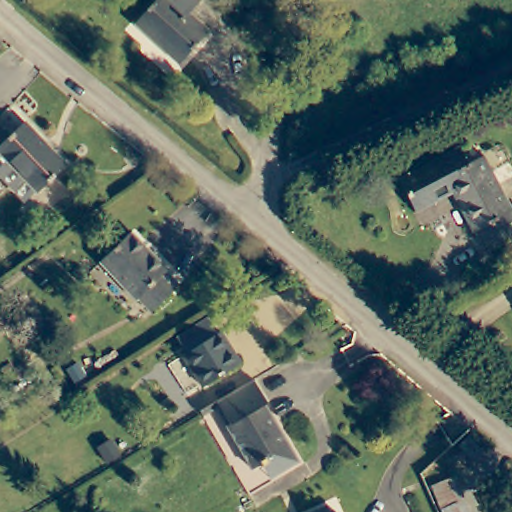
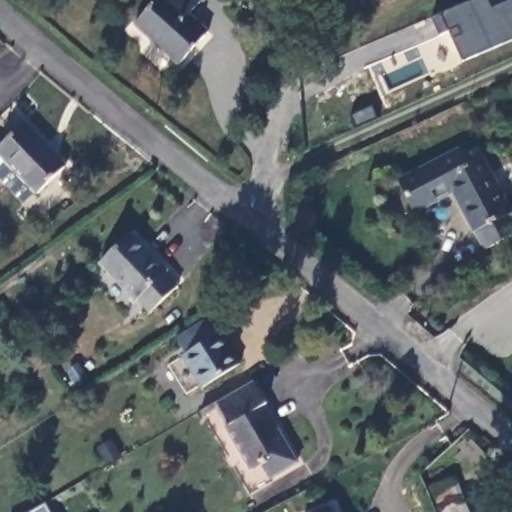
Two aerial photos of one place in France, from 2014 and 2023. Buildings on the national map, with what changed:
unchanged [(154,0),(201,0),(191,12),(207,30),(177,62),(135,19),(154,0)]
new [(469,0),(485,0),(489,9),(502,3),(501,0),(512,0),(512,42),(461,65),(446,34),(437,38),(427,19),(469,0)]
unchanged [(0,116),(12,105),(67,166),(37,193),(34,190),(21,202),(0,179),(0,148),(14,135),(0,118),(0,116)]
unchanged [(455,148),(463,165),(478,157),(507,213),(512,210),(512,233),(478,251),(468,232),(467,233),(447,192),(411,211),(395,178),(455,148)]
unchanged [(151,313),(139,300),(136,303),(100,264),(131,235),(167,273),(165,276),(178,289),(151,313)]
unchanged [(177,337),(207,318),(217,334),(222,332),(242,365),(202,388),(184,356),(187,354),(177,337)]
unchanged [(269,404),(262,408),(272,425),(276,422),(299,463),(275,477),(268,466),(263,469),(261,464),(251,469),(227,428),(232,426),(221,407),(204,417),(200,410),(212,403),(218,400),(255,379),(269,404)]
unchanged [(495,462),(485,472),(468,454),(478,445),(495,462)]
unchanged [(470,512),(441,512),(430,485),(456,476),(470,512)]
new [(32,512),(46,504),(51,512),(32,512)]
unchanged [(327,512),(320,512),(326,510),(327,512)]

